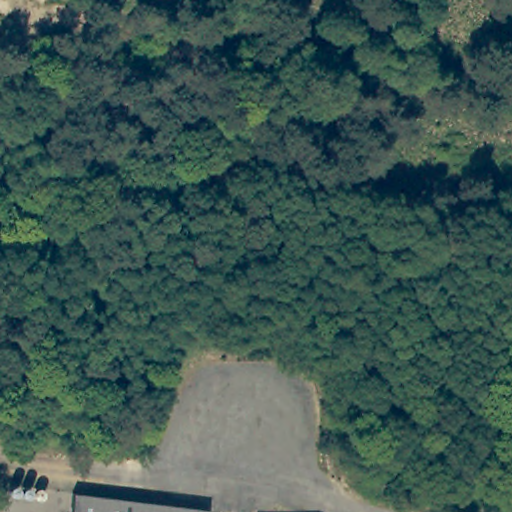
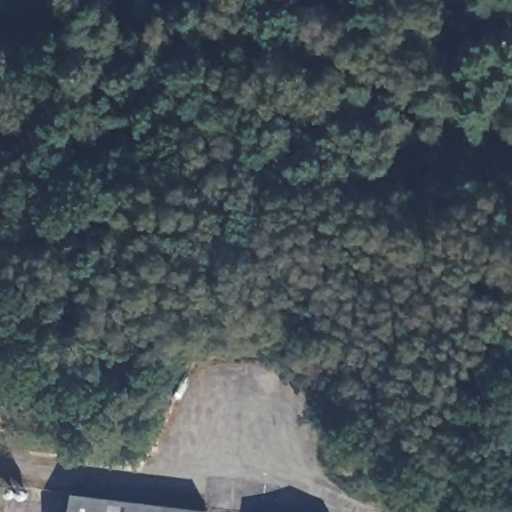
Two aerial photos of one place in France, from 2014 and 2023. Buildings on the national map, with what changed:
unchanged [(206,509),(206,512),(70,512),(72,493),(206,509)]

